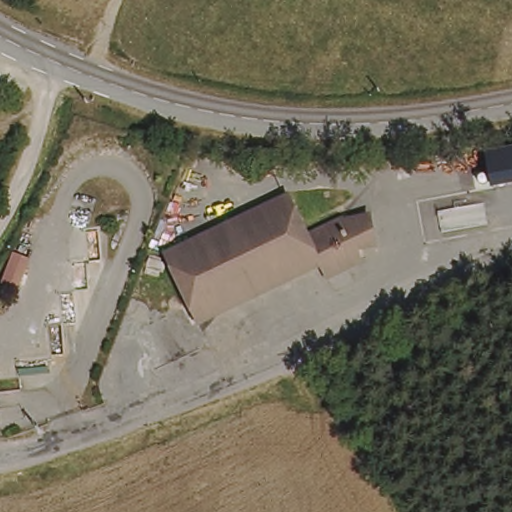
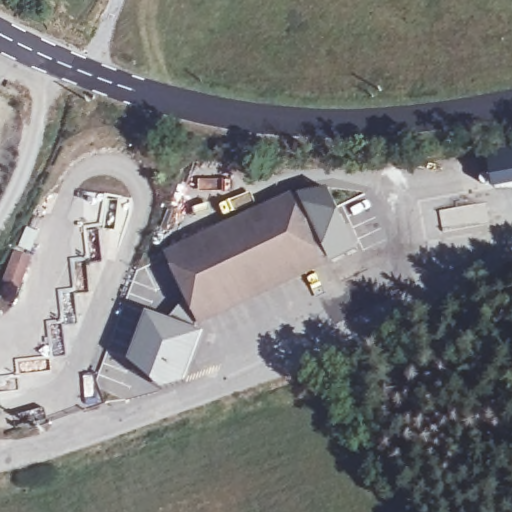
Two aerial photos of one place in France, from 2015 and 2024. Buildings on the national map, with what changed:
unchanged [(512,151),(512,185),(491,188),(487,155),(512,151)]
unchanged [(351,266),(329,277),(321,262),(198,320),(167,254),(290,195),(309,235),(342,220),(344,223),(354,219),(372,216),(378,247),(356,250),(357,252),(361,261),(351,266)]
new [(147,312),(168,320),(188,299),(198,320),(189,328),(204,334),(186,383),(163,391),(129,361),(147,312)]

